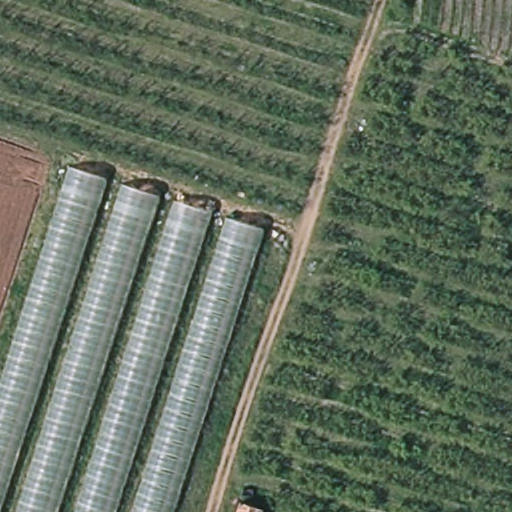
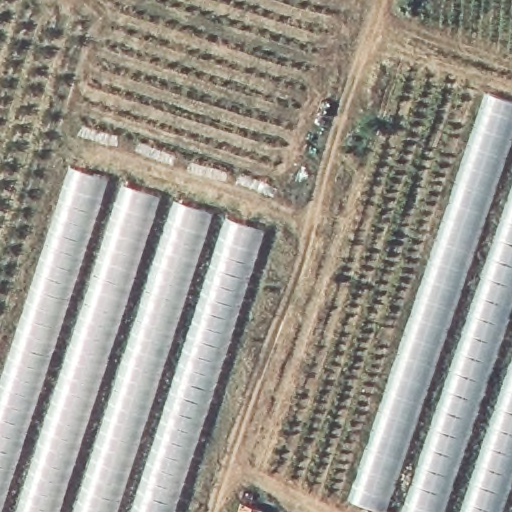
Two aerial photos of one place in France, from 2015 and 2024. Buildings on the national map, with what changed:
new [(512,102),(512,512),(385,512),(350,500),(487,93),(512,102)]
unchanged [(0,512),(0,391),(71,170),(259,230),(170,512),(0,512)]
unchanged [(248,512),(243,512),(244,511),(248,512)]

